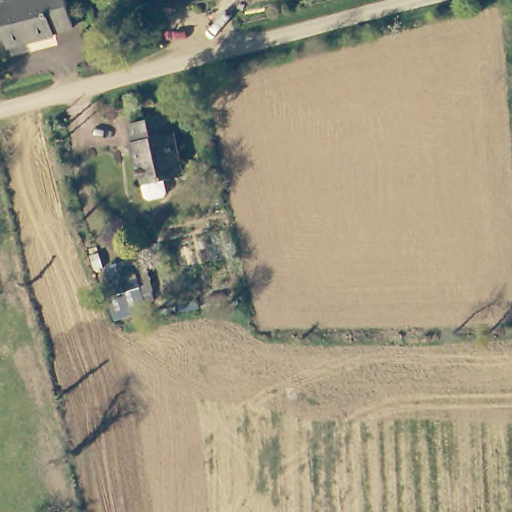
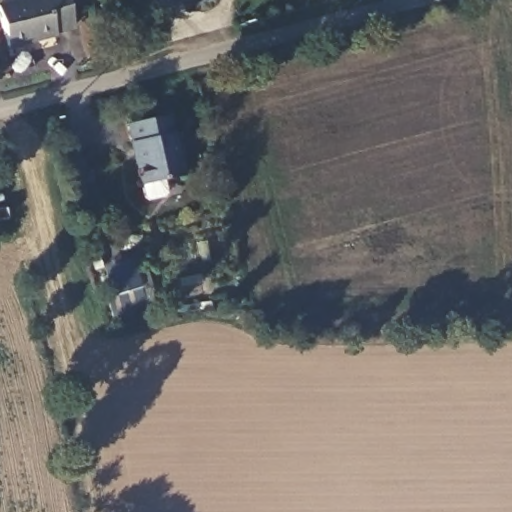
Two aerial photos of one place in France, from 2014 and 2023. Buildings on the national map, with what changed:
unchanged [(7,47),(0,21),(0,5),(19,0),(65,0),(72,28),(7,47)]
unchanged [(153,0),(205,0),(157,14),(153,0)]
unchanged [(169,111),(184,174),(166,178),(165,190),(148,192),(144,179),(133,133),(131,119),(169,111)]
unchanged [(107,274),(136,267),(145,303),(118,312),(107,274)]

